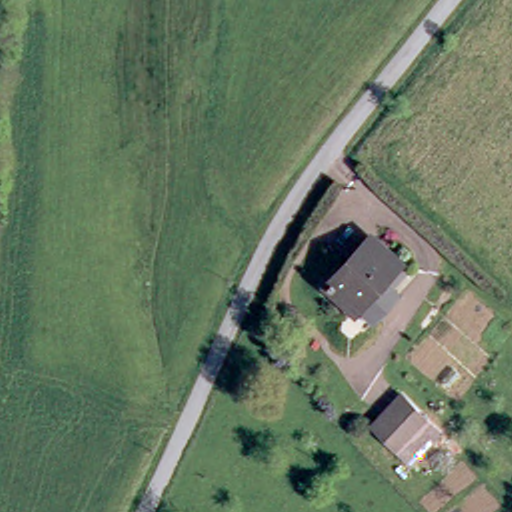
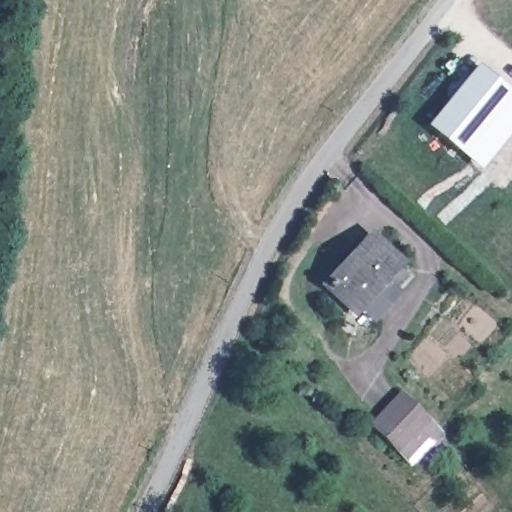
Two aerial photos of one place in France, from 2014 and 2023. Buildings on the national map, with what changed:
new [(512,94),(512,131),(479,172),(426,126),(477,65),(512,94)]
unchanged [(369,241),(401,269),(361,312),(330,283),(369,241)]
unchanged [(397,451),(374,428),(406,397),(428,420),(397,451)]

